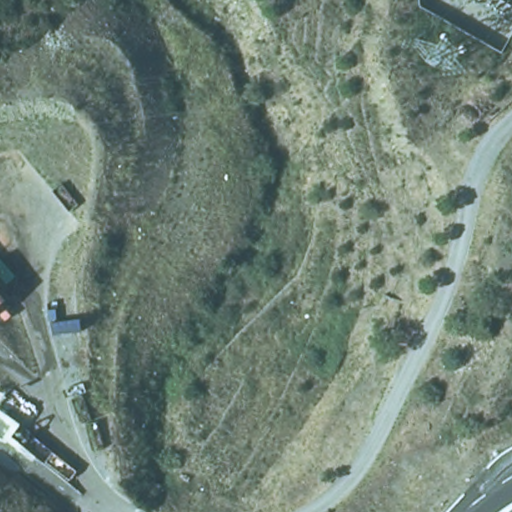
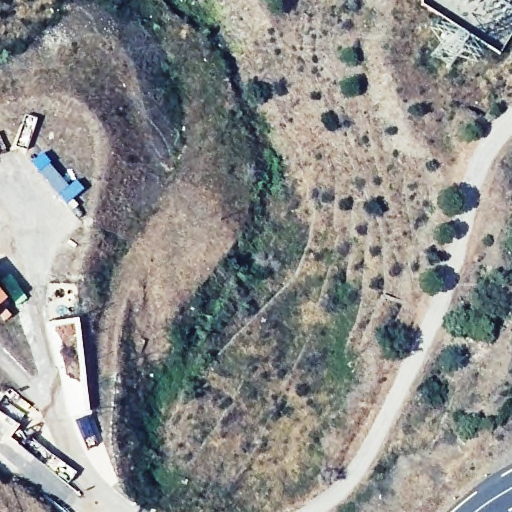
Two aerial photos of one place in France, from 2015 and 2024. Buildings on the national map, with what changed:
unchanged [(9,304),(1,311),(0,312),(0,292),(9,304)]

